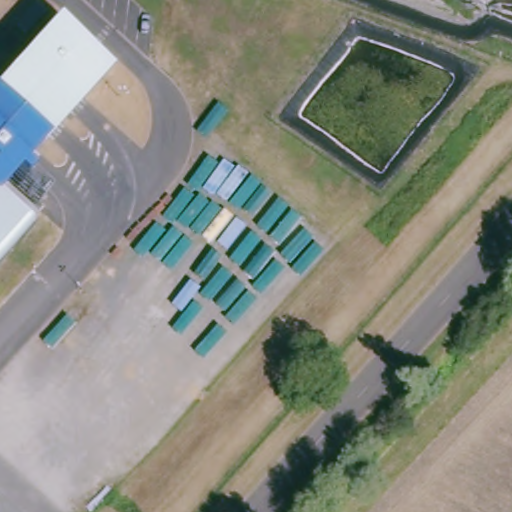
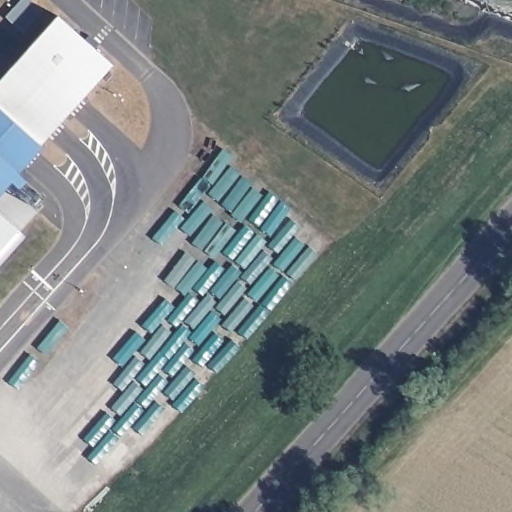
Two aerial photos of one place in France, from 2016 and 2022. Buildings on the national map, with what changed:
unchanged [(21,175),(26,178),(18,188),(11,183),(0,196),(0,82),(60,16),(116,66),(43,148),(21,175)]
unchanged [(22,230),(0,255),(0,210),(22,230)]

